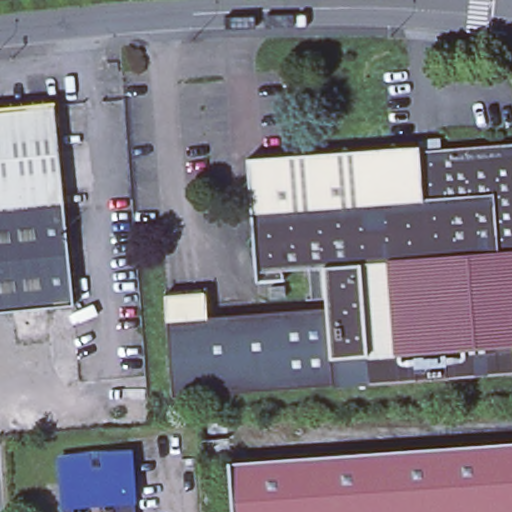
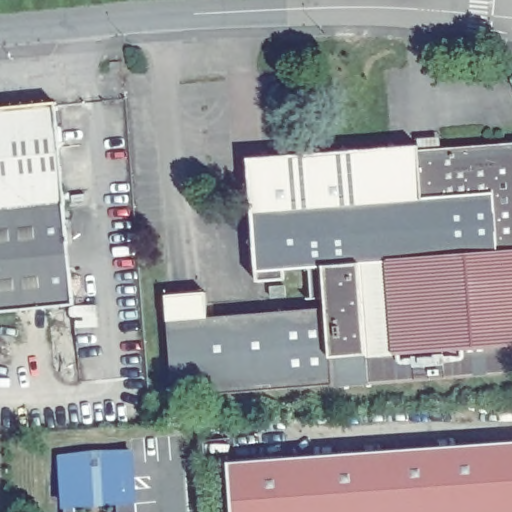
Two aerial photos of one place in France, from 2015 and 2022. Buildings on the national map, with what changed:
unchanged [(57,101),(77,303),(0,311),(0,107),(57,101)]
unchanged [(209,292),(211,320),(313,308),(310,267),(261,271),(252,157),(512,144),(512,372),(176,397),(169,295),(209,292)]
unchanged [(236,462),(512,443),(512,512),(238,512),(236,462)]
unchanged [(65,507),(63,507),(60,453),(97,448),(133,450),(137,501),(137,512),(65,512),(65,507)]

